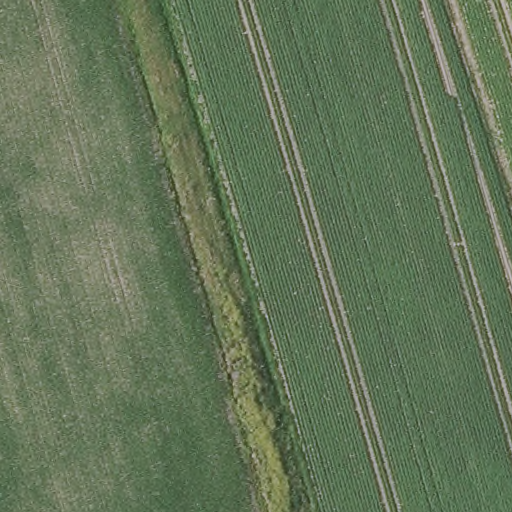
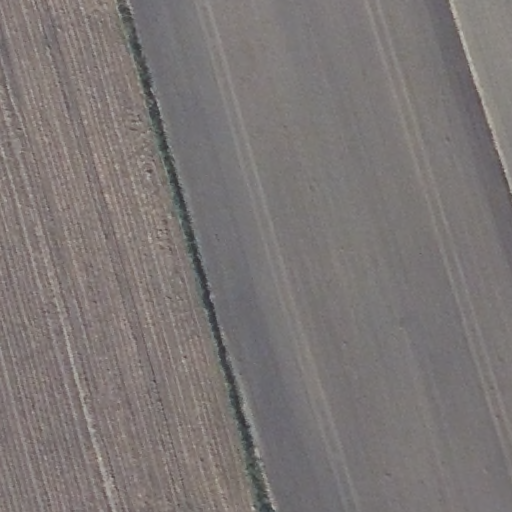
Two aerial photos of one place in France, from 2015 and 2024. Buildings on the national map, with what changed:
[]

